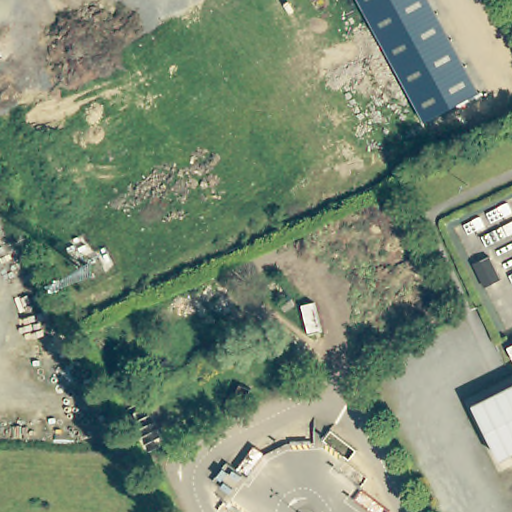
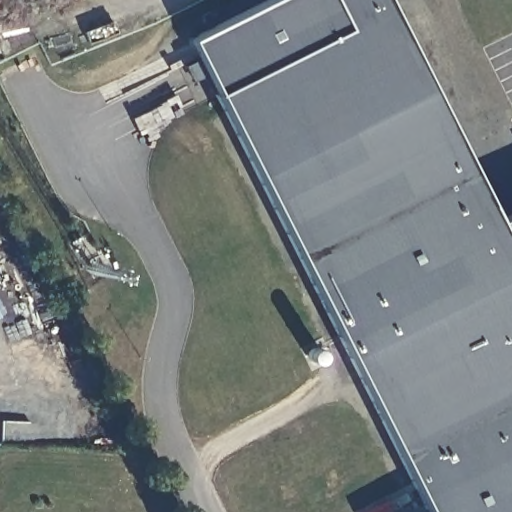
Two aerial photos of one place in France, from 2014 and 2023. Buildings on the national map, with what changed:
new [(268,0),(386,0),(497,220),(512,213),(512,245),(510,246),(512,251),(512,512),(427,512),(187,40),(268,0)]

